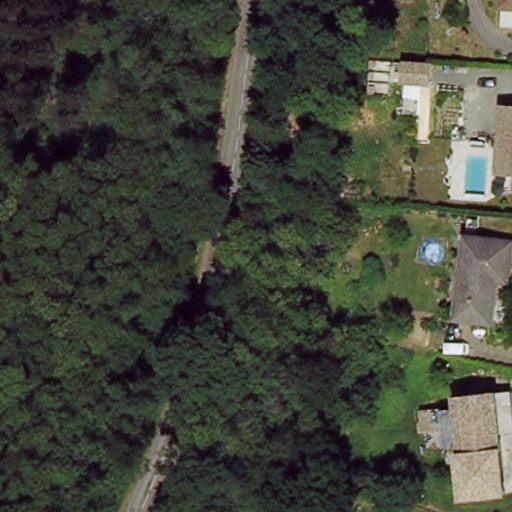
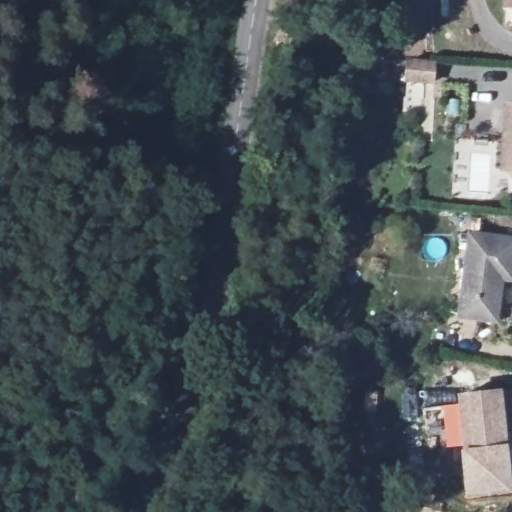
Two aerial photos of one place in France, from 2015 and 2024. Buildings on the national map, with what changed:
unchanged [(407,60),(437,60),(437,85),(407,84),(407,60)]
unchanged [(503,166),(510,107),(512,108),(512,167),(503,166)]
unchanged [(502,273),(498,316),(467,315),(471,240),(512,240),(512,273),(502,273)]
unchanged [(512,437),(512,476),(462,483),(452,406),(507,395),(512,437)]

